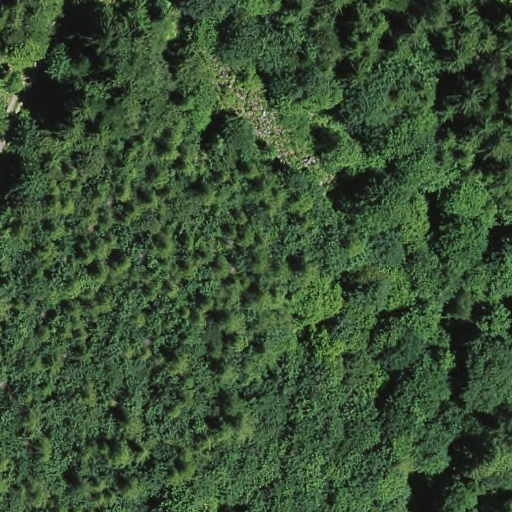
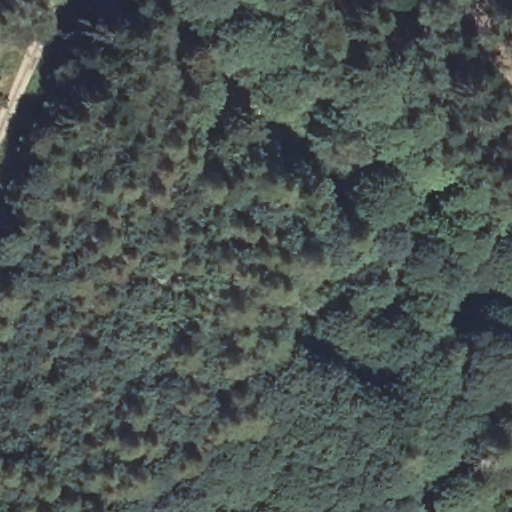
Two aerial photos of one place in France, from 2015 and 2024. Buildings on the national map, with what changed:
[]

